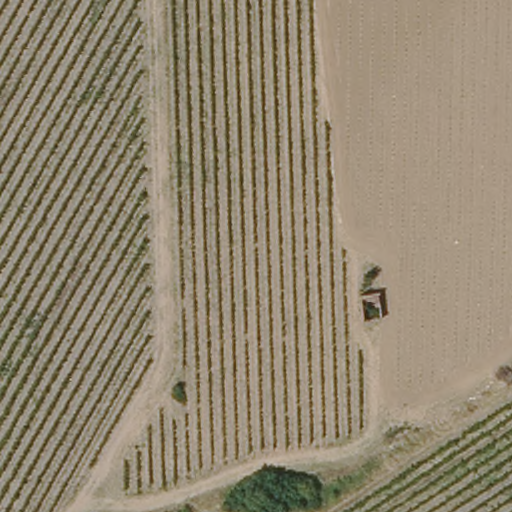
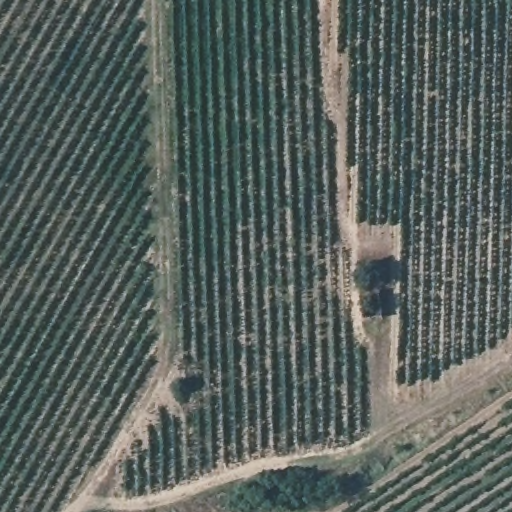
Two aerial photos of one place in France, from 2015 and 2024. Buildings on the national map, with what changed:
unchanged [(378,287),(379,316),(364,319),(360,290),(378,287)]

